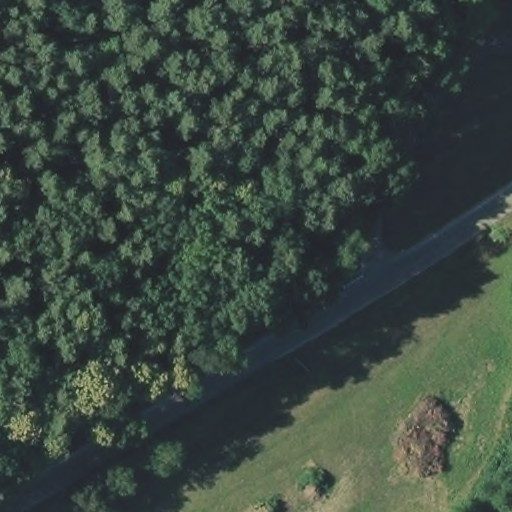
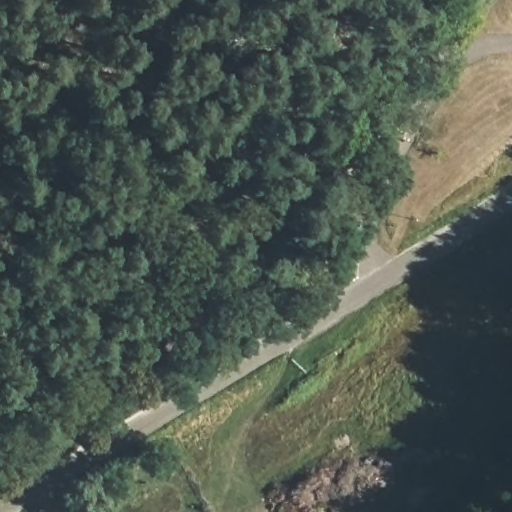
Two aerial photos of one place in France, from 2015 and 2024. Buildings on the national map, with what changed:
[]

